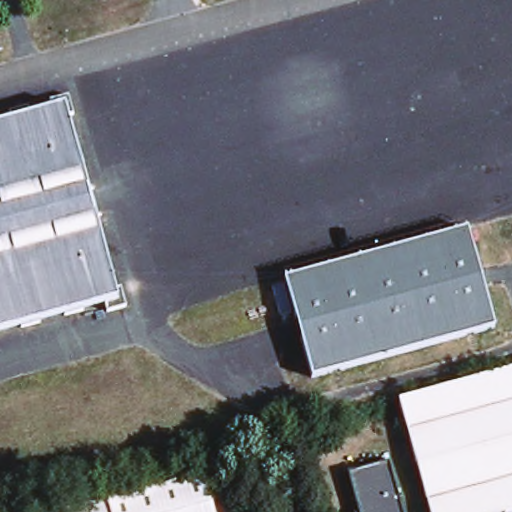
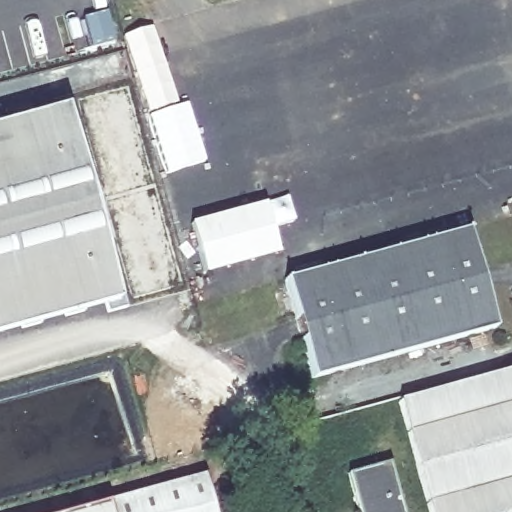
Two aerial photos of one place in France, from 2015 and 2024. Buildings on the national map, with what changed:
new [(153,23),(180,103),(147,114),(120,34),(153,23)]
unchanged [(21,121),(19,113),(37,108),(40,116),(61,111),(59,103),(79,96),(85,115),(74,119),(123,289),(131,285),(136,307),(116,313),(114,307),(0,337),(0,127),(21,121)]
new [(180,103),(187,100),(207,161),(165,175),(147,114),(180,103)]
new [(289,194),(295,221),(273,228),(280,254),(203,275),(188,222),(264,200),(289,194)]
unchanged [(478,228),(504,325),(321,374),(294,277),(478,228)]
unchanged [(402,399),(403,399),(404,398),(404,397),(512,366),(512,508),(499,512),(434,512),(402,399)]
unchanged [(401,458),(417,512),(367,512),(366,508),(372,506),(360,469),(401,458)]
unchanged [(214,473),(226,512),(73,512),(214,473)]

